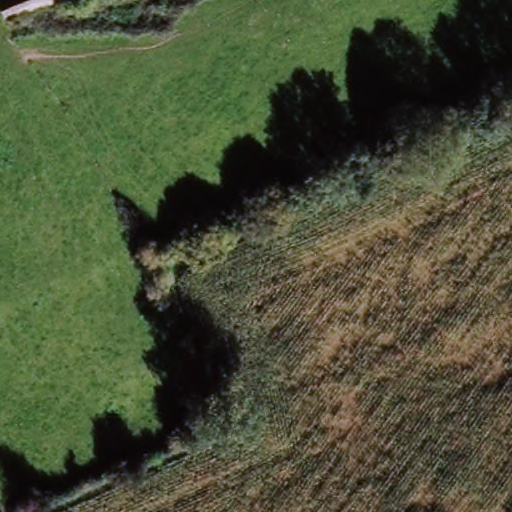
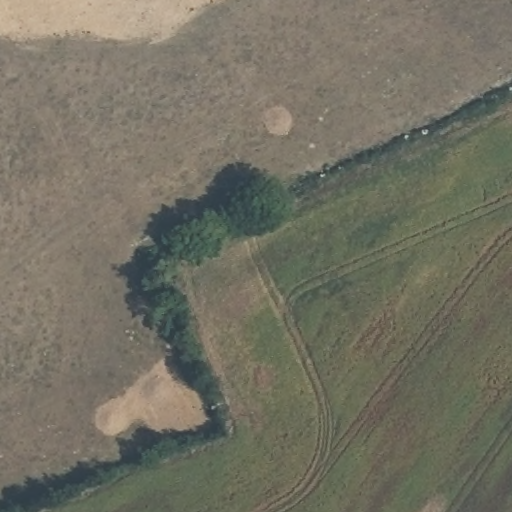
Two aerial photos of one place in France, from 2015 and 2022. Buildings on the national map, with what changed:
unchanged [(3,9),(0,1),(0,0),(27,0),(3,9)]

